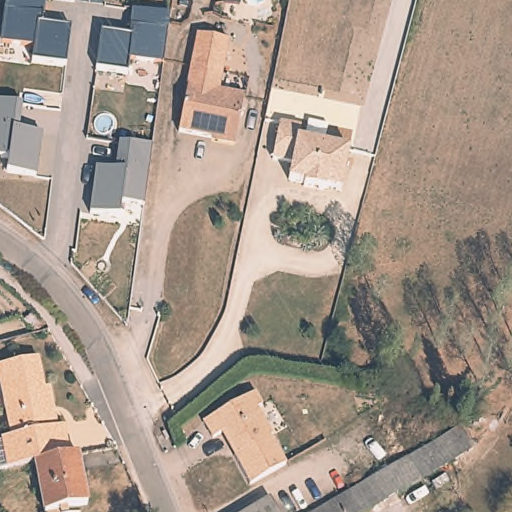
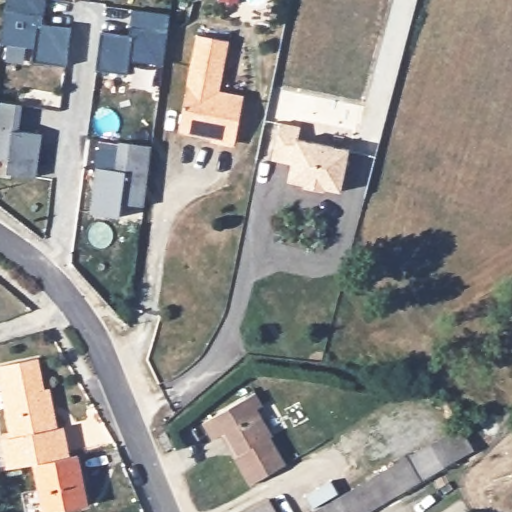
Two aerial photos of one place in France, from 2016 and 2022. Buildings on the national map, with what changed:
unchanged [(70,30),(65,66),(32,61),(34,48),(0,44),(0,40),(6,0),(44,0),(39,26),(70,30)]
unchanged [(225,0),(240,0),(239,4),(225,2),(225,0)]
unchanged [(101,34),(128,36),(131,12),(169,16),(163,64),(129,60),(128,74),(96,70),(101,34)]
unchanged [(178,137),(197,40),(229,46),(219,97),(244,101),(235,148),(178,137)]
unchanged [(20,130),(40,133),(35,176),(6,174),(6,158),(0,157),(0,103),(24,106),(20,130)]
unchanged [(304,187),(304,184),(288,181),(292,164),(272,160),(280,123),(300,127),(298,140),(349,150),(341,192),(325,189),(324,191),(304,187)]
unchanged [(113,171),(118,143),(151,146),(143,206),(120,204),(119,217),(89,213),(95,169),(113,171)]
unchanged [(34,330),(26,323),(35,313),(46,325),(34,330)]
unchanged [(16,428),(1,357),(43,349),(49,380),(55,379),(63,419),(69,418),(75,447),(40,454),(0,462),(0,433),(2,433),(7,432),(6,430),(16,428)]
unchanged [(265,383),(272,396),(267,400),(282,426),(280,428),(296,455),(260,476),(244,447),(247,445),(235,423),(223,430),(213,413),(265,383)]
unchanged [(378,504),(364,512),(314,512),(466,423),(478,445),(378,504)]
unchanged [(83,446),(93,496),(85,497),(86,503),(66,507),(66,502),(50,505),(40,454),(75,447),(83,446)]
unchanged [(275,495),(285,512),(245,512),(275,495)]

